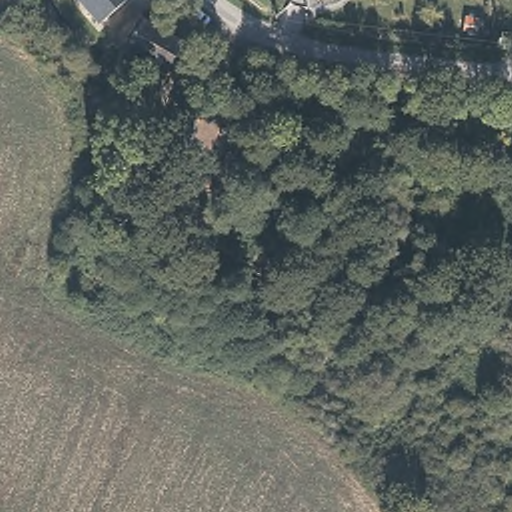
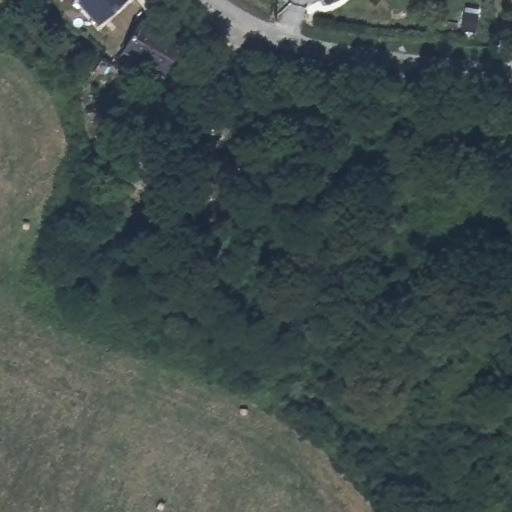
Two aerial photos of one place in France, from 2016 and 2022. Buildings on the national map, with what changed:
unchanged [(117,9),(95,26),(76,2),(79,0),(129,0),(117,9)]
unchanged [(462,15),(476,17),(474,32),(460,29),(462,15)]
unchanged [(119,47),(139,18),(174,41),(179,44),(158,72),(119,47)]

